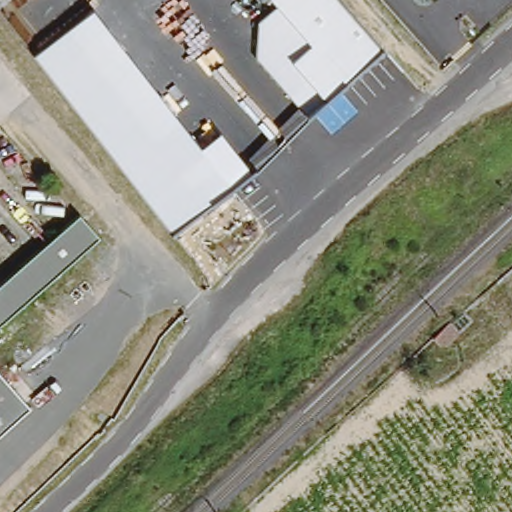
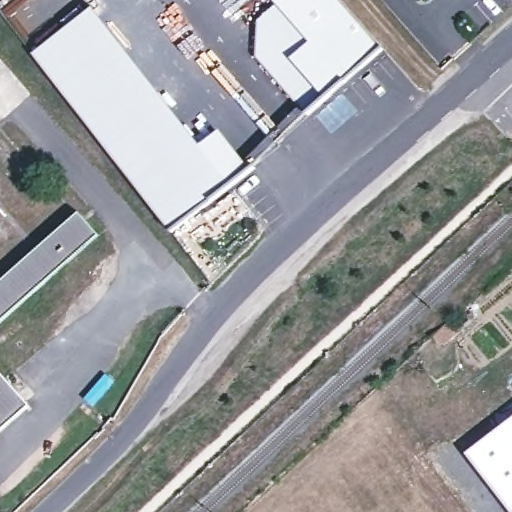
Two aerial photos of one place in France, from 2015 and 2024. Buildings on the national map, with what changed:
unchanged [(309,111),(260,60),(261,17),(280,4),(277,0),(343,0),(382,45),(309,111)]
unchanged [(33,57),(94,5),(203,141),(224,127),(255,165),(174,231),(33,57)]
unchanged [(95,240),(0,325),(0,284),(76,217),(95,240)]
unchanged [(0,433),(0,377),(27,410),(0,433)]
new [(511,512),(465,453),(512,420),(512,512),(511,512)]

